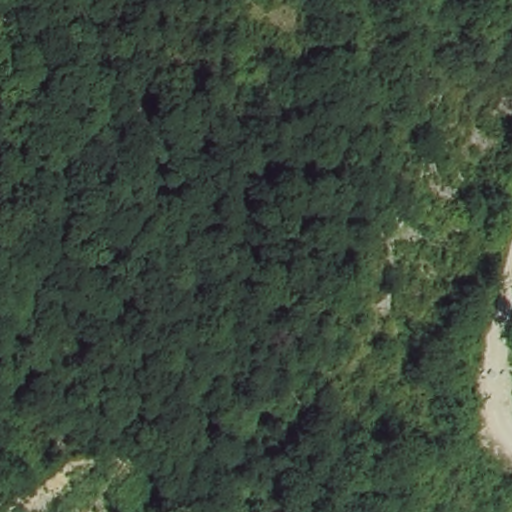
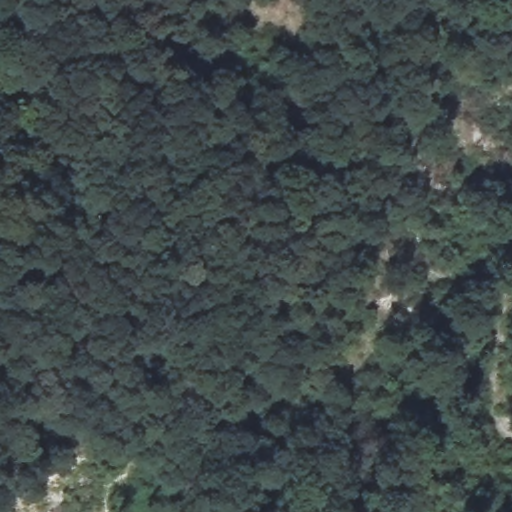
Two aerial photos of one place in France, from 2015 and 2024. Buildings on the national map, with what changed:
unchanged [(507,330),(512,323),(512,333),(507,330)]

